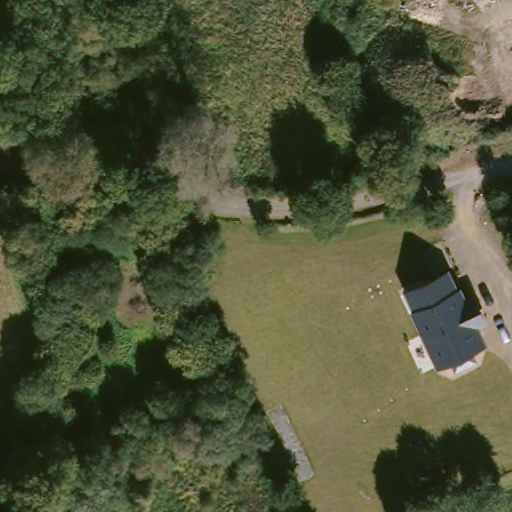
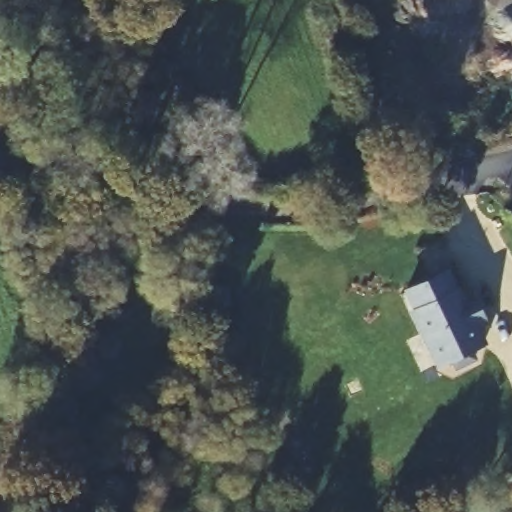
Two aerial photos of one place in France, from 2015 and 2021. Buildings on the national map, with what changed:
unchanged [(458,289),(463,288),(468,300),(476,298),(487,324),(481,327),(488,344),(474,353),(478,360),(456,371),(451,363),(438,369),(404,289),(449,269),(458,289)]

